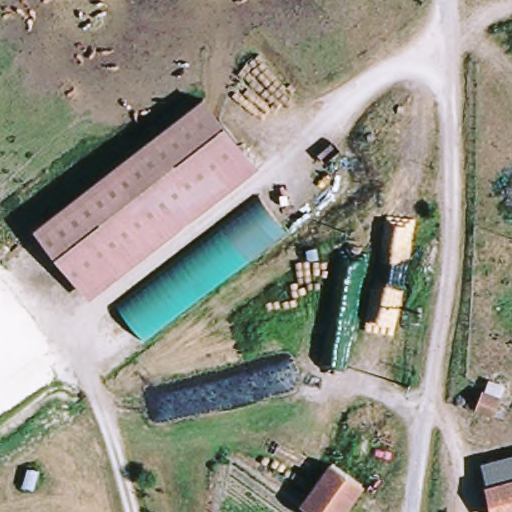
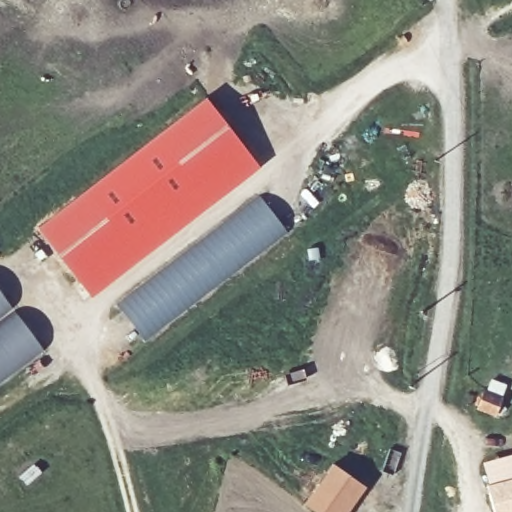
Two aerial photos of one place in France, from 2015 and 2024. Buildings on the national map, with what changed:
unchanged [(207,95),(262,163),(94,295),(37,224),(207,95)]
unchanged [(262,191),(291,229),(149,335),(117,301),(262,191)]
new [(0,387),(0,291),(45,352),(0,387)]
unchanged [(481,386),(504,392),(500,410),(476,405),(481,386)]
unchanged [(512,456),(512,477),(483,485),(478,465),(512,456)]
unchanged [(354,481),(337,512),(317,512),(302,501),(327,461),(354,481)]
unchanged [(491,512),(483,485),(512,477),(512,512),(491,512)]

